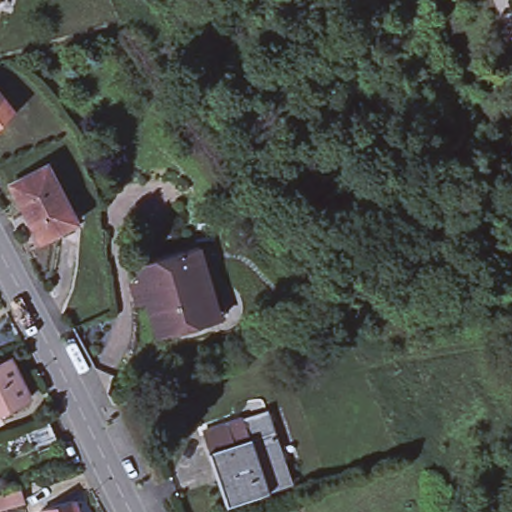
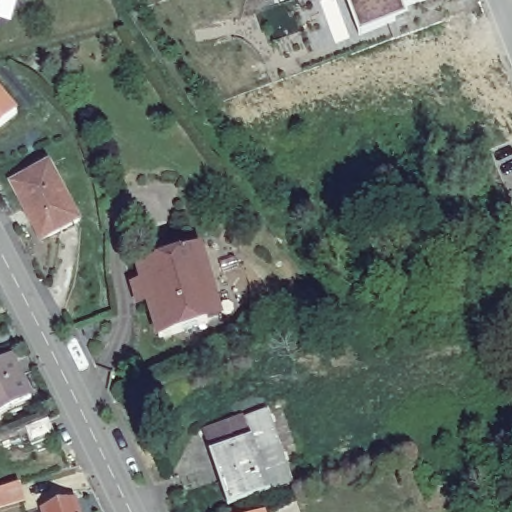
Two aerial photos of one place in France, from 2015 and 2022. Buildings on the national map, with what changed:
new [(403,2),(407,10),(360,30),(346,0),(410,0),(403,2)]
unchanged [(0,126),(0,92),(17,110),(0,126)]
unchanged [(48,166),(78,222),(42,241),(12,185),(48,166)]
unchanged [(214,317),(165,333),(153,297),(143,300),(137,281),(147,277),(142,261),(205,242),(220,291),(227,313),(214,317)]
unchanged [(0,417),(0,366),(12,360),(31,398),(29,399),(32,405),(2,420),(0,417)]
unchanged [(237,502),(228,505),(210,453),(202,433),(242,419),(267,410),(289,474),(292,483),(269,491),(237,502)]
unchanged [(57,438),(30,446),(25,429),(47,421),(57,438)]
unchanged [(35,500),(0,511),(0,493),(30,483),(35,500)]
unchanged [(85,500),(88,512),(52,512),(52,510),(85,500)]

